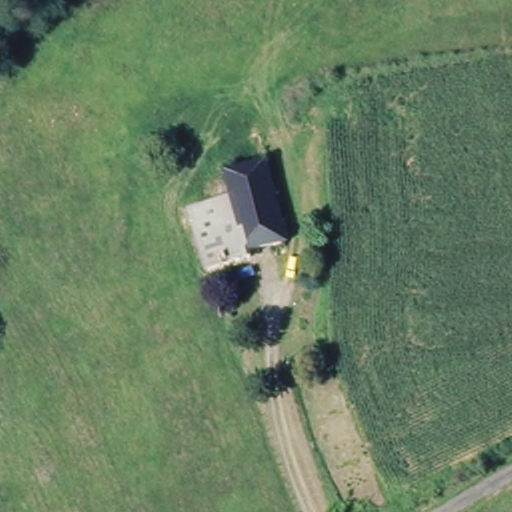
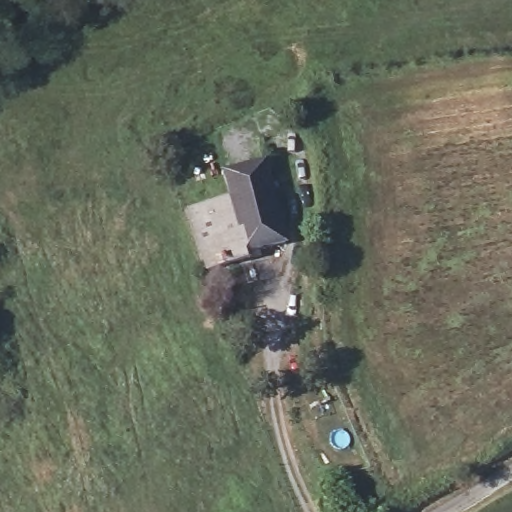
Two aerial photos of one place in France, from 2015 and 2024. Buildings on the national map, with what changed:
unchanged [(198,211),(222,202),(214,178),(260,161),(283,237),(212,265),(198,211)]

